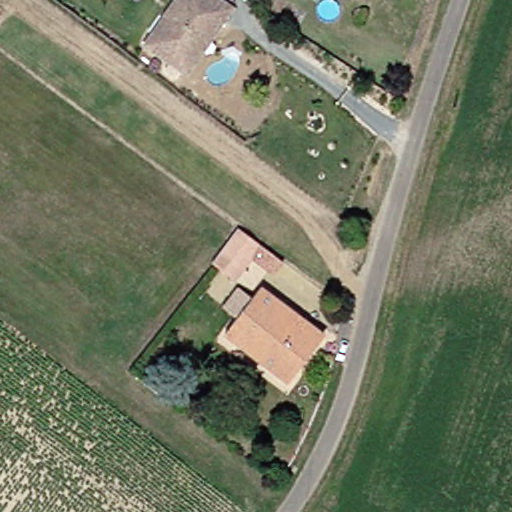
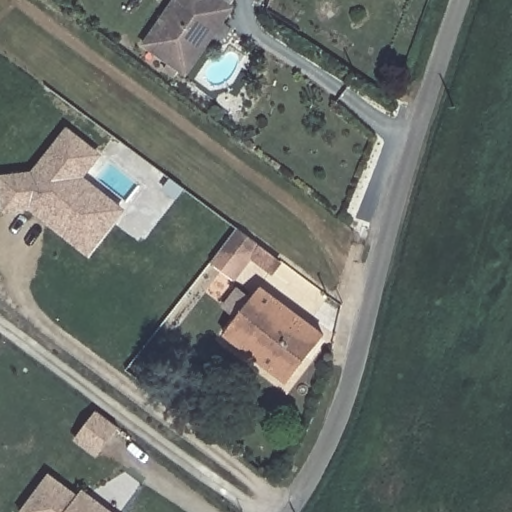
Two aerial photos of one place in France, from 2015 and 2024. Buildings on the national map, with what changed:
unchanged [(134,45),(166,0),(210,0),(222,9),(212,23),(176,74),(171,71),(134,45)]
unchanged [(275,0),(284,0),(300,9),(292,23),(269,10),(275,0)]
new [(31,208),(5,211),(1,179),(33,174),(68,131),(98,156),(71,190),(112,222),(88,253),(49,222),(38,214),(31,208)]
unchanged [(200,263),(213,246),(227,228),(250,245),(249,247),(270,263),(263,273),(241,257),(223,280),(200,263)]
unchanged [(314,335),(277,383),(214,334),(227,317),(215,307),(228,290),(240,300),(250,288),(314,335)]
new [(97,412),(117,427),(96,455),(76,440),(97,412)]
new [(78,494),(83,490),(111,512),(21,512),(49,474),(78,494)]

